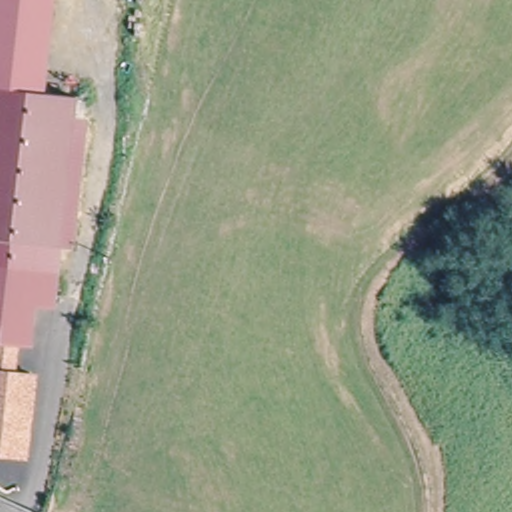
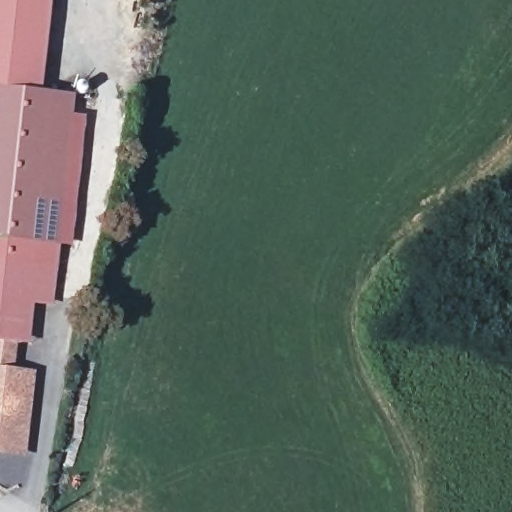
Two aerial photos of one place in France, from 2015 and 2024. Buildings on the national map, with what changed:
unchanged [(56,9),(0,1),(0,0),(56,0),(56,9)]
unchanged [(56,9),(36,156),(0,152),(0,1),(56,9)]
unchanged [(79,96),(76,115),(87,117),(73,247),(61,245),(54,303),(47,302),(53,251),(64,160),(36,156),(44,99),(45,91),(79,96)]
unchanged [(20,298),(14,348),(0,346),(0,152),(36,156),(64,160),(53,251),(47,302),(20,298)]
unchanged [(0,456),(0,346),(14,348),(11,375),(28,376),(21,445),(20,458),(0,456)]

